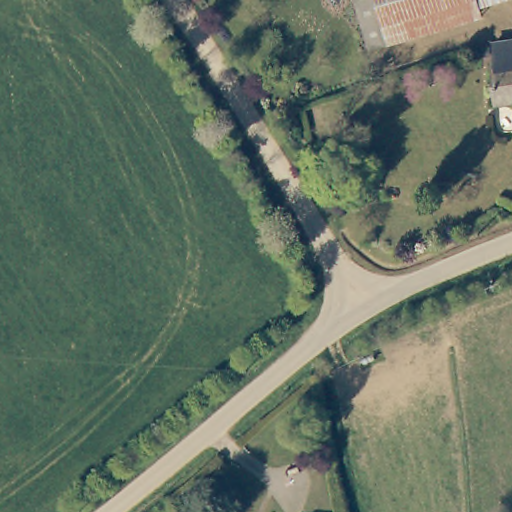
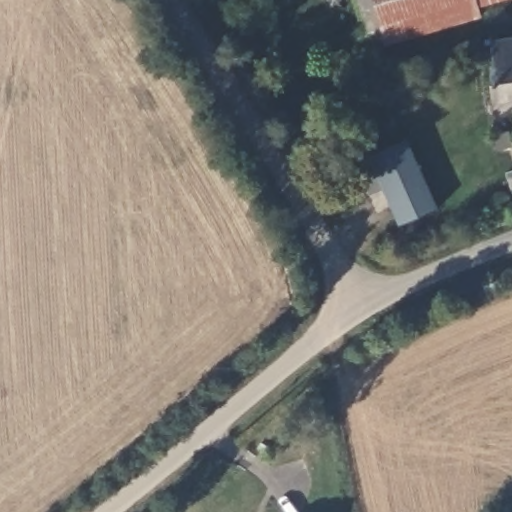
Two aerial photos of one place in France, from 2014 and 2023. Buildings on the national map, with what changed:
unchanged [(385,32),(367,37),(355,0),(375,0),(385,32)]
unchanged [(479,6),(385,32),(375,0),(478,0),(479,6)]
unchanged [(492,102),(488,67),(478,69),(476,49),(492,47),(492,44),(512,41),(512,100),(492,102)]
new [(437,209),(399,226),(367,159),(407,140),(437,209)]

